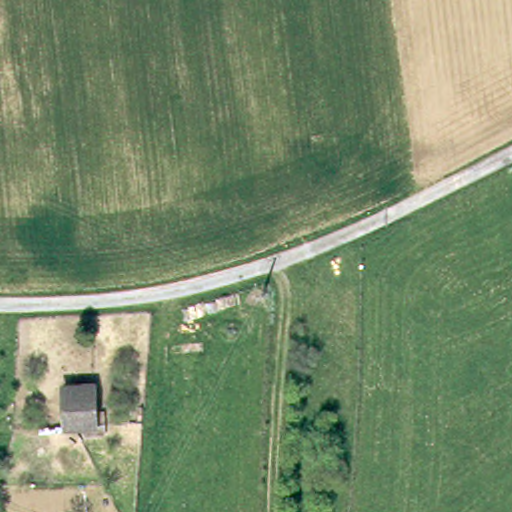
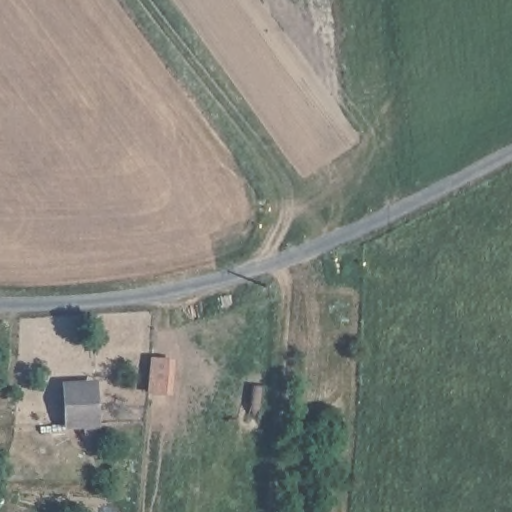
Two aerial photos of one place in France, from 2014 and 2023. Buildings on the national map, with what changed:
unchanged [(102,425),(71,428),(68,387),(98,384),(102,425)]

